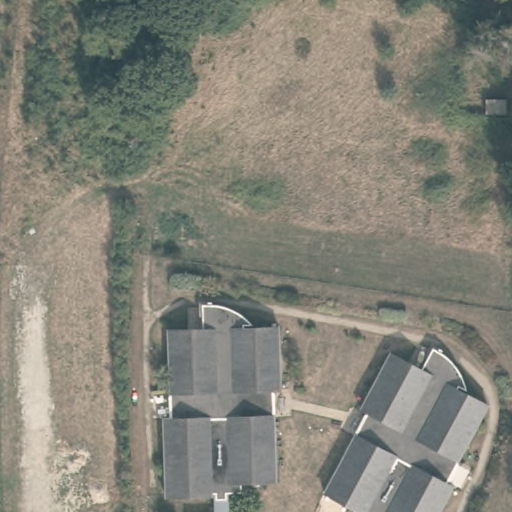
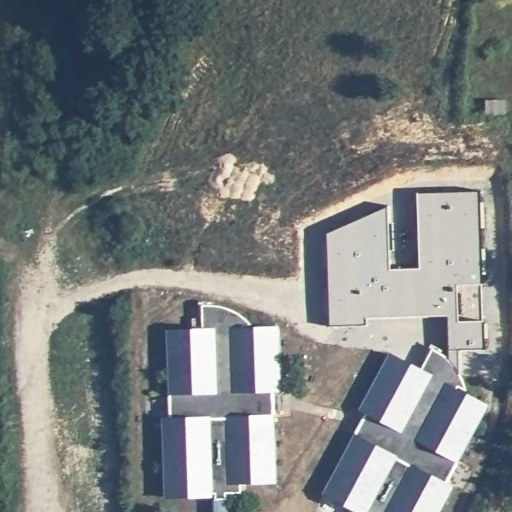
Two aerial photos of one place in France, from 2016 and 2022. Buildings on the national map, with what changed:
unchanged [(507,115),(486,115),(485,99),(506,99),(507,115)]
new [(459,352),(461,373),(453,361),(448,357),(445,317),(366,318),(366,325),(329,327),(326,233),(388,205),(389,270),(419,269),(417,193),(479,192),(482,284),(456,285),(456,293),(461,293),(462,316),(457,317),(458,323),(484,322),(484,350),(459,352)]
unchanged [(216,491),(207,491),(207,495),(166,496),(164,418),(172,417),(169,331),(204,330),(203,305),(210,305),(226,306),(243,315),(253,325),(244,326),(244,328),(279,327),(281,391),(274,391),(277,481),(242,482),(242,491),(229,491),(229,512),(217,512),(216,491)]
unchanged [(355,509),(325,492),(368,414),(361,409),(391,354),(422,369),(433,348),(453,361),(461,373),(466,391),(458,387),(458,389),(488,405),(444,483),(453,487),(439,512),(353,512),(355,509)]

